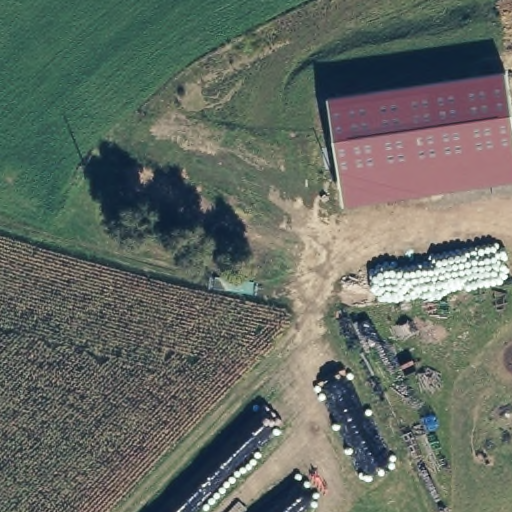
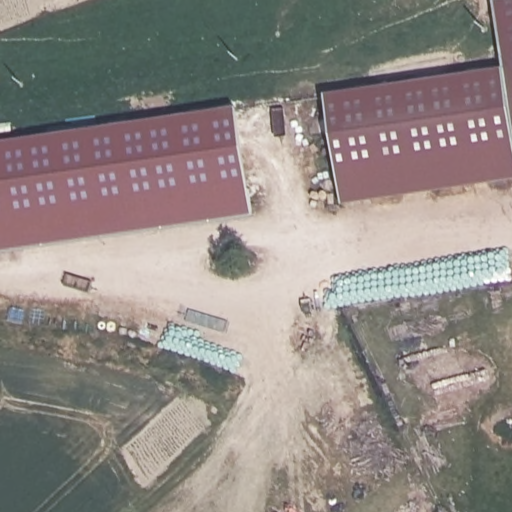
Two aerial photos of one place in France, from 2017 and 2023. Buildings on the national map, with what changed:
unchanged [(344,205),(329,99),(506,73),(512,119),(512,181),(344,205)]
new [(0,146),(238,111),(254,217),(0,255),(0,146)]

